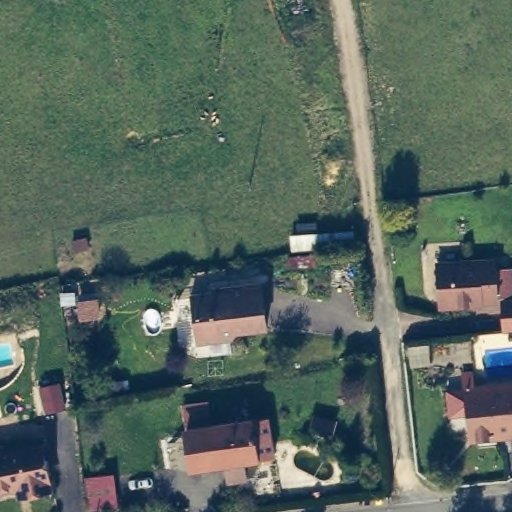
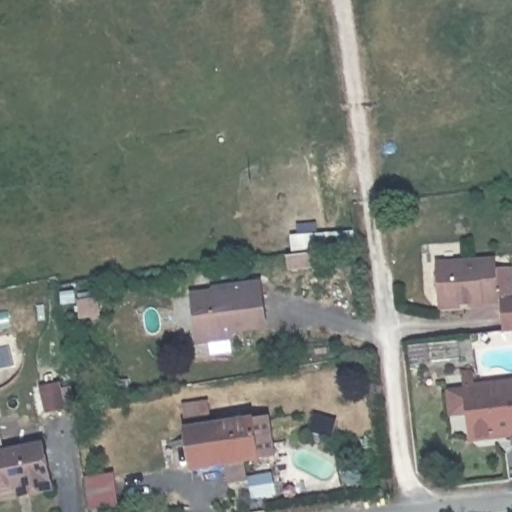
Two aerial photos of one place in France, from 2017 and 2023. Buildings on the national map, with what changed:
unchanged [(495,270),(510,269),(512,299),(512,331),(505,332),(502,296),(497,296),(497,301),(471,302),(471,306),(440,307),(437,265),(495,261),(495,270)]
unchanged [(192,292),(230,287),(230,283),(261,280),(266,322),(237,327),(232,333),(207,336),(196,328),(192,292)]
unchanged [(10,307),(14,325),(0,329),(0,309),(10,307)]
unchanged [(490,442),(477,443),(471,438),(466,393),(512,388),(512,434),(495,436),(490,442)]
unchanged [(246,475),(227,478),(225,462),(190,467),(185,427),(248,418),(267,413),(273,453),(255,457),(243,458),(246,475)]
unchanged [(19,492),(17,484),(0,487),(0,448),(42,440),(50,477),(51,486),(19,492)]
unchanged [(112,477),(115,505),(90,507),(86,480),(112,477)]

